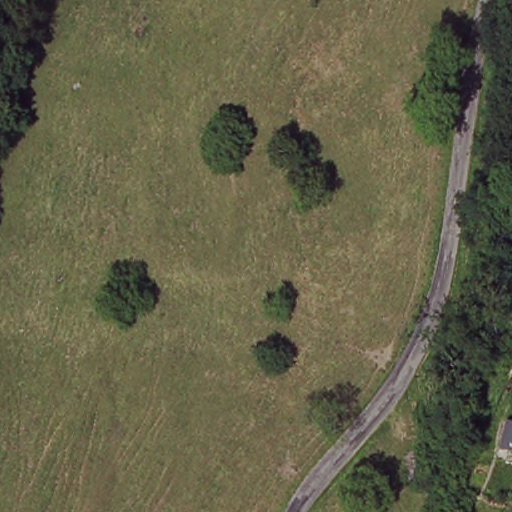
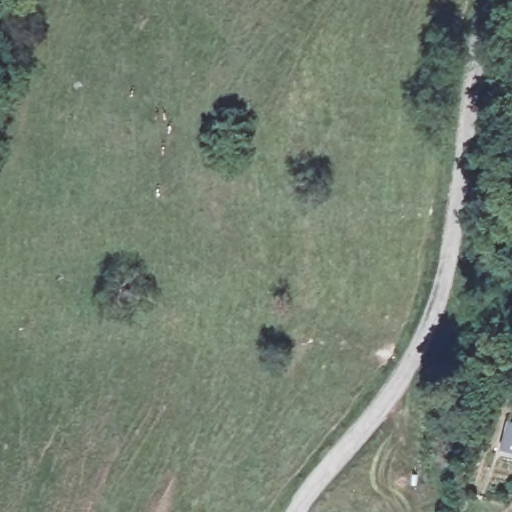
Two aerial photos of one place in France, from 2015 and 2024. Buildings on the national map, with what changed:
unchanged [(512,420),(512,450),(496,448),(503,417),(512,420)]

